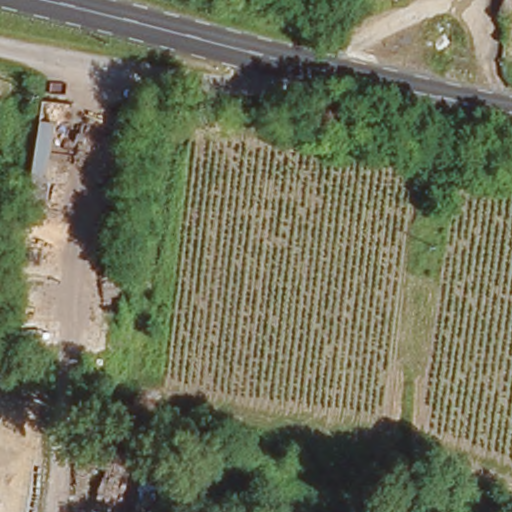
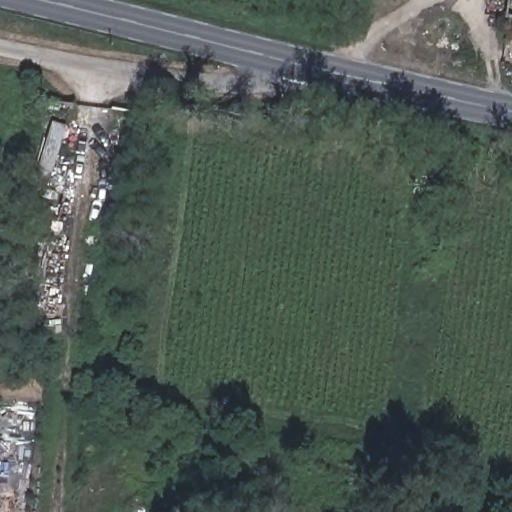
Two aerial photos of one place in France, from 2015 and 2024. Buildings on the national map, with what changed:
unchanged [(391,2),(387,0),(391,0),(391,2)]

